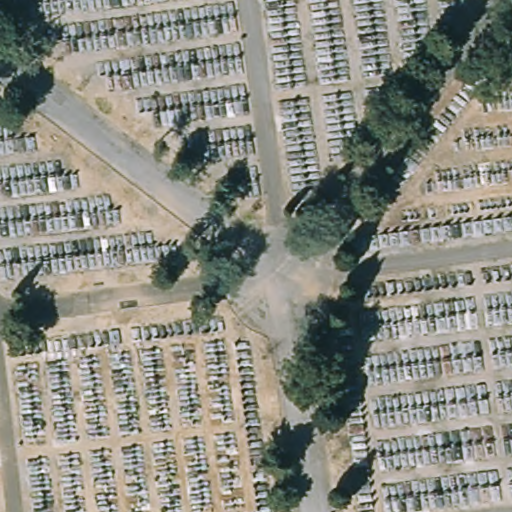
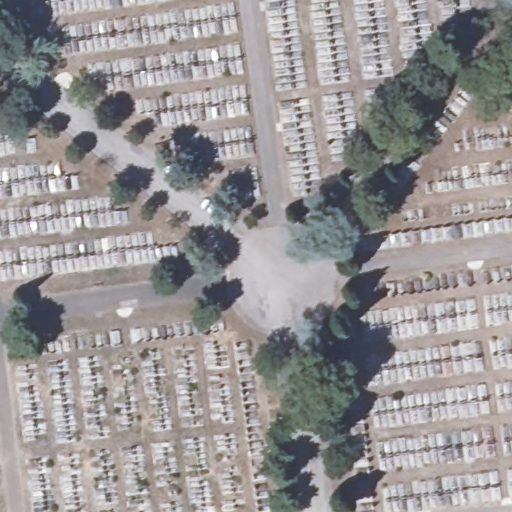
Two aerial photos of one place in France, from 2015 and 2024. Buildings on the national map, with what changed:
[]

